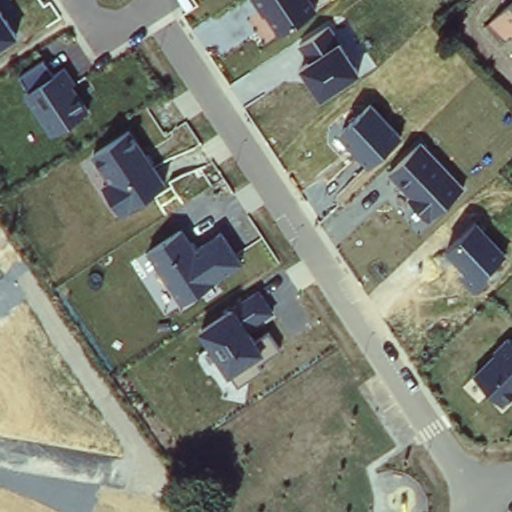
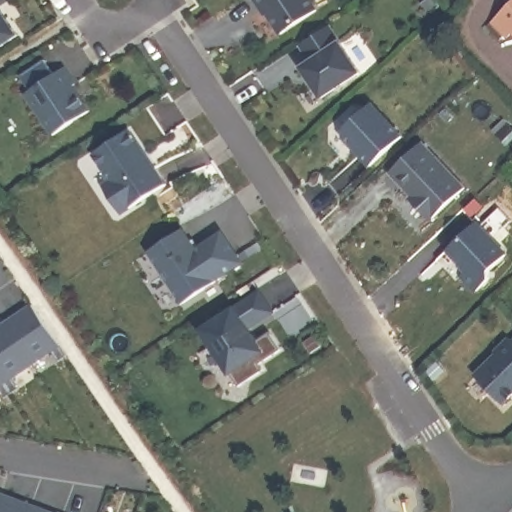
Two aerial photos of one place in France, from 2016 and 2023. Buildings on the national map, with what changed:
unchanged [(320,8),(277,31),(266,12),(262,13),(255,0),(314,0),(320,8)]
unchanged [(512,3),(512,41),(507,37),(501,43),(485,28),(512,3)]
unchanged [(0,48),(0,9),(17,36),(0,48)]
unchanged [(320,98),(300,65),(311,57),(300,40),(330,24),(342,41),(361,71),(320,98)]
unchanged [(44,59),(51,68),(65,64),(78,83),(75,85),(88,107),(50,131),(26,95),(30,90),(21,73),(44,59)]
unchanged [(367,167),(337,130),(372,101),(402,135),(367,167)]
unchanged [(120,214),(102,185),(110,179),(94,153),(130,128),(165,182),(120,214)]
unchanged [(430,220),(408,196),(411,194),(389,168),(420,139),(465,184),(430,220)]
unchanged [(472,288),(460,274),(464,271),(443,249),(475,218),(508,252),(472,288)]
unchanged [(181,229),(197,246),(221,231),(240,262),(217,275),(181,300),(147,251),(181,229)]
unchanged [(273,309),(247,326),(255,338),(267,330),(278,347),(259,360),(263,367),(237,384),(231,373),(228,376),(199,328),(233,304),(257,289),(273,309)]
new [(31,305),(66,355),(58,361),(51,350),(31,364),(4,324),(31,305)]
new [(0,394),(0,377),(0,326),(4,324),(31,364),(11,377),(19,388),(11,393),(4,398),(0,394)]
unchanged [(494,355),(492,352),(508,334),(512,338),(512,391),(503,400),(475,375),(494,355)]
new [(0,512),(0,494),(30,505),(27,512),(0,512)]
new [(50,512),(27,512),(30,505),(50,512)]

